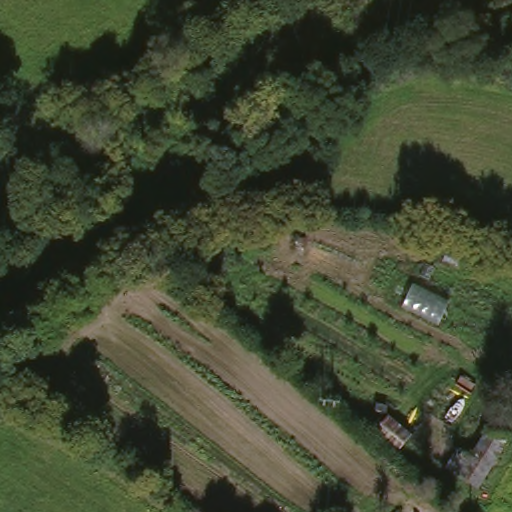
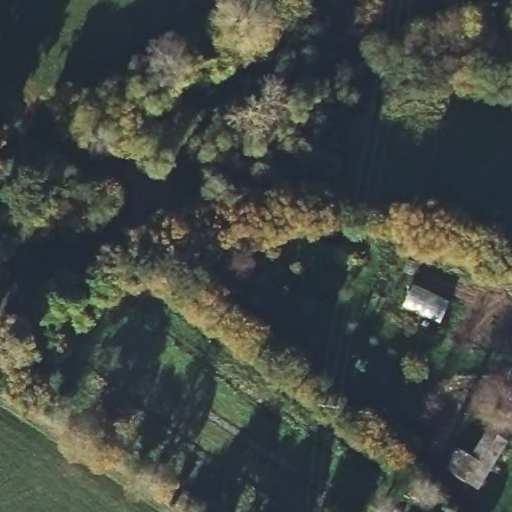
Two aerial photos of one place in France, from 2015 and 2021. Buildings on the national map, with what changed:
unchanged [(440,472),(455,451),(464,457),(481,434),(500,447),(468,490),(440,472)]

